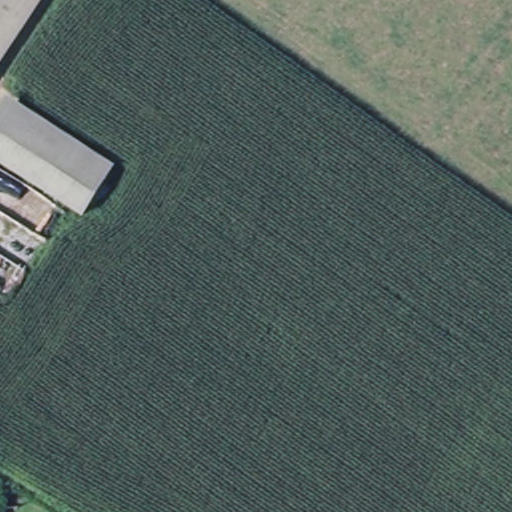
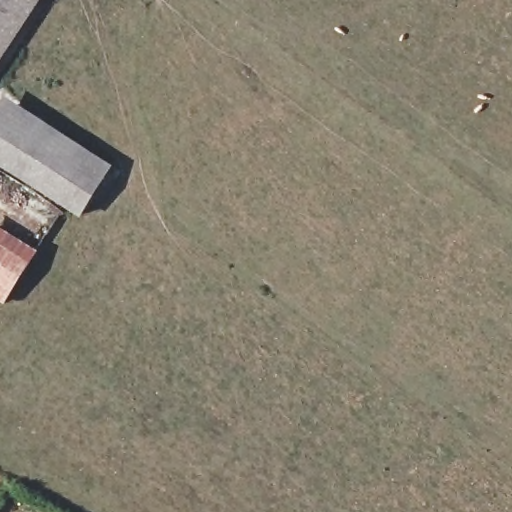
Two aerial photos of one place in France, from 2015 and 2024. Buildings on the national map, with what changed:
unchanged [(30,28),(0,74),(0,0),(50,0),(30,28)]
unchanged [(8,102),(115,170),(83,215),(0,160),(0,115),(8,102)]
new [(38,252),(5,304),(0,301),(0,227),(38,252)]

